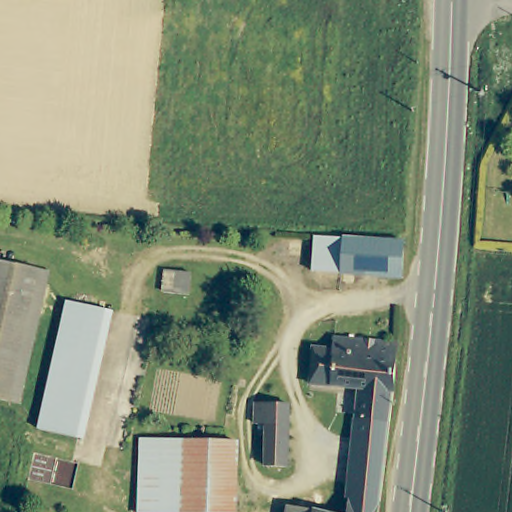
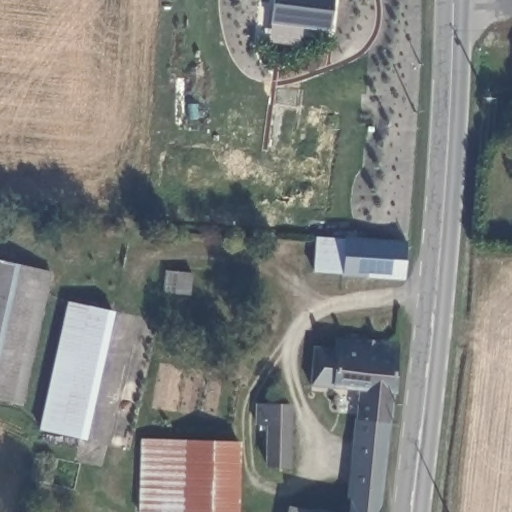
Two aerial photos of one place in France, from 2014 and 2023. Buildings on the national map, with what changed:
new [(270,23),(272,0),(334,0),(331,31),(270,23)]
unchanged [(345,238),(345,274),(313,273),(314,237),(345,238)]
unchanged [(403,239),(403,250),(401,275),(345,274),(345,238),(403,239)]
unchanged [(19,399),(0,395),(0,259),(46,269),(19,399)]
unchanged [(110,306),(82,436),(38,425),(41,410),(67,298),(110,306)]
unchanged [(393,390),(390,416),(366,414),(368,385),(310,380),(313,344),(333,345),(335,333),(397,338),(393,390)]
unchanged [(252,429),(260,429),(260,415),(254,413),(254,393),(285,392),(286,410),(293,411),(291,473),(271,474),(252,474),(252,429)]
unchanged [(377,501),(350,496),(358,413),(366,414),(390,416),(377,501)]
unchanged [(236,512),(142,512),(141,440),(235,440),(236,512)]
unchanged [(350,496),(377,501),(376,512),(346,512),(350,496)]
unchanged [(291,505),(333,512),(290,512),(291,505)]

